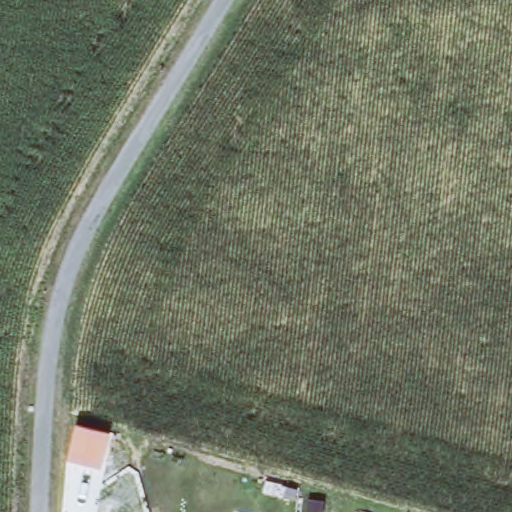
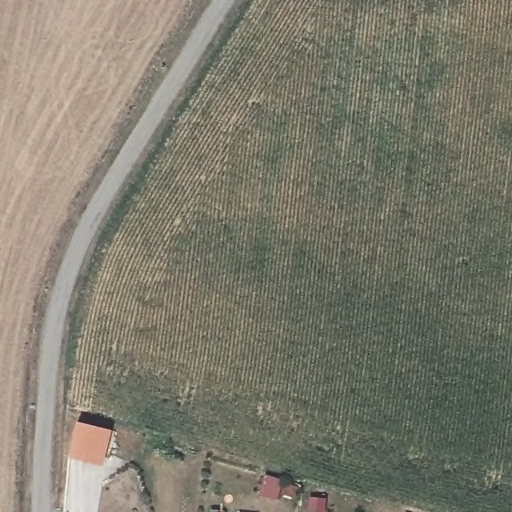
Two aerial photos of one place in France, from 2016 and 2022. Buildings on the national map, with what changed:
unchanged [(94,425),(86,458),(54,451),(62,417),(94,425)]

